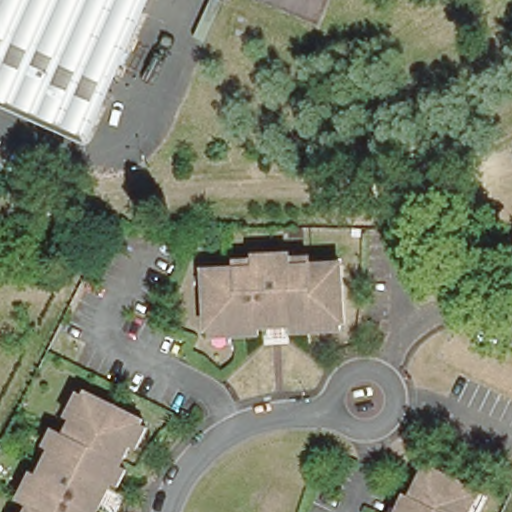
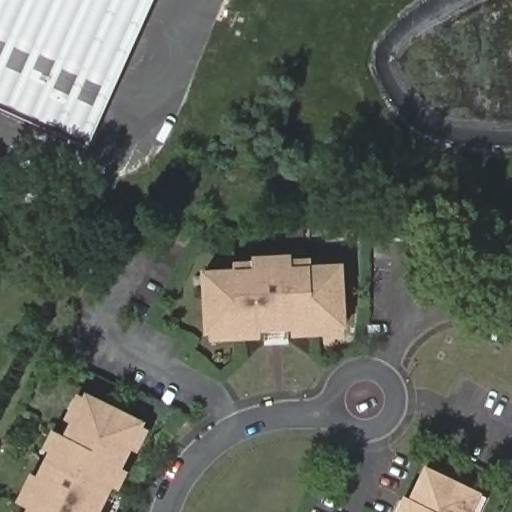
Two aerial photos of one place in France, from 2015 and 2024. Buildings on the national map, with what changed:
unchanged [(85,142),(0,104),(0,0),(151,0),(85,142)]
unchanged [(257,270),(256,259),(293,258),(294,269),(344,268),(346,327),(210,332),(207,271),(257,270)]
unchanged [(21,499),(56,429),(61,432),(83,389),(138,417),(91,512),(21,512),(26,501),(21,499)]
unchanged [(472,490),(481,495),(473,512),(398,512),(421,465),(472,490)]

